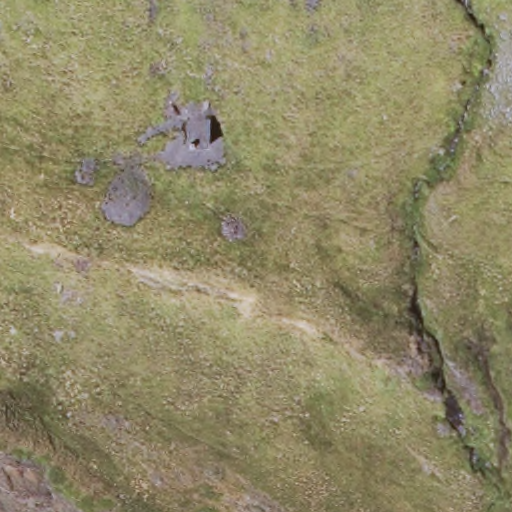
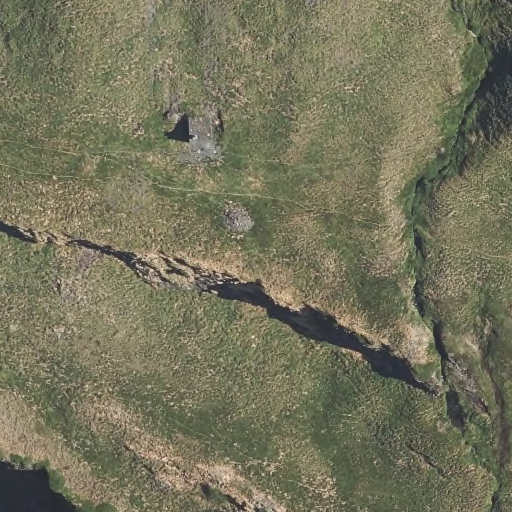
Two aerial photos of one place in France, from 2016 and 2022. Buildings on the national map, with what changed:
unchanged [(211,124),(212,146),(190,147),(190,123),(211,124)]

